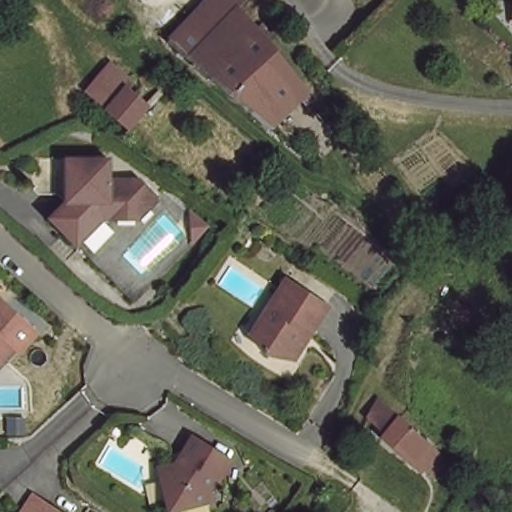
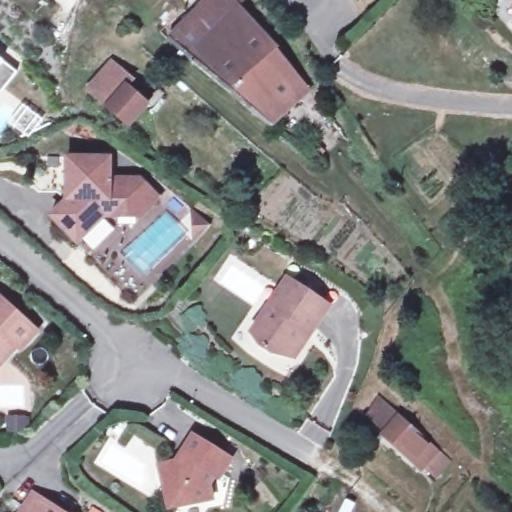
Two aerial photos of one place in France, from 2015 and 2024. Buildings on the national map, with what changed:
unchanged [(191,19),(209,0),(243,0),(242,2),(239,5),(209,36),(191,19)]
unchanged [(209,36),(239,5),(307,90),(269,127),(168,41),(186,22),(182,19),(187,15),(191,19),(209,36)]
new [(0,95),(0,59),(17,72),(0,95)]
unchanged [(127,88),(147,106),(130,125),(95,95),(90,91),(112,65),(117,69),(132,82),(127,88)]
unchanged [(105,217),(77,244),(50,217),(67,201),(67,189),(34,188),(40,182),(40,157),(67,158),(110,158),(110,180),(140,180),(150,189),(158,199),(150,207),(140,217),(105,217)]
unchanged [(195,243),(195,222),(195,210),(202,216),(212,227),(195,243)]
unchanged [(329,306),(310,333),(307,331),(303,337),(306,340),(298,352),(292,348),(287,356),(272,353),(260,346),(252,333),(265,312),(268,315),(272,308),(269,306),(287,278),(329,306)]
unchanged [(20,351),(17,347),(0,366),(0,299),(37,332),(20,351)]
unchanged [(430,447),(415,462),(377,430),(392,413),(430,447)]
unchanged [(182,453),(193,436),(232,460),(220,478),(215,476),(210,485),(212,500),(180,507),(167,500),(162,479),(160,466),(172,463),(183,460),(182,453)]
unchanged [(34,495),(60,512),(23,512),(34,495)]

